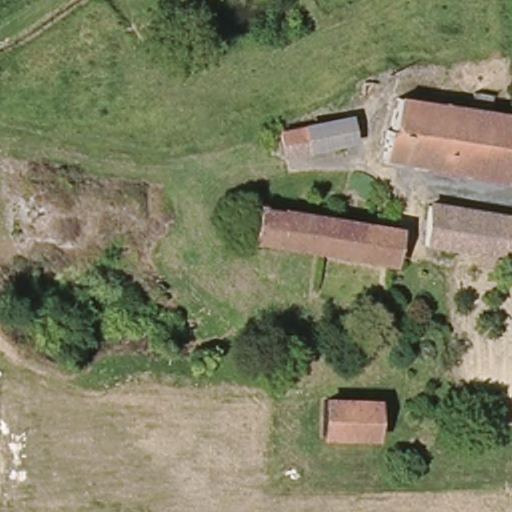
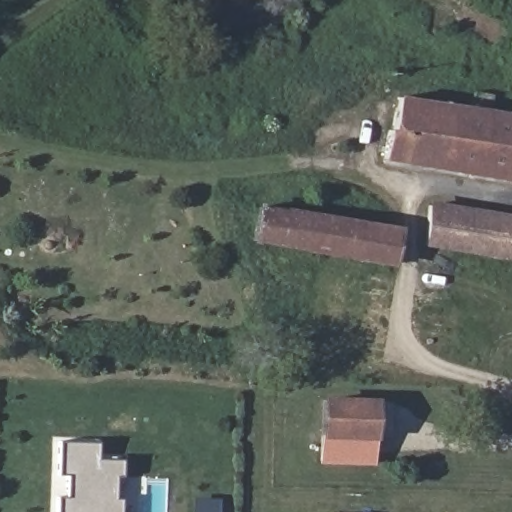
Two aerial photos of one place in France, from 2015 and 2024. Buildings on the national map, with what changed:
unchanged [(354,100),(355,86),(365,86),(366,76),(376,75),(376,85),(375,100),(354,100)]
unchanged [(391,170),(396,144),(402,132),(406,106),(512,120),(512,185),(391,170)]
demolished [(292,157),(288,138),(348,125),(352,145),(292,157)]
unchanged [(433,250),(425,249),(432,210),(512,221),(512,259),(445,251),(443,262),(432,260),(433,250)]
unchanged [(264,245),(267,211),(400,229),(398,263),(264,245)]
unchanged [(330,404),(372,404),(372,438),(329,437),(330,404)]
new [(65,496),(65,478),(57,477),(58,440),(98,442),(96,458),(121,460),(121,477),(116,477),(115,497),(121,497),(120,512),(56,512),(56,496),(65,496)]
new [(218,500),(218,512),(191,512),(192,499),(218,500)]

